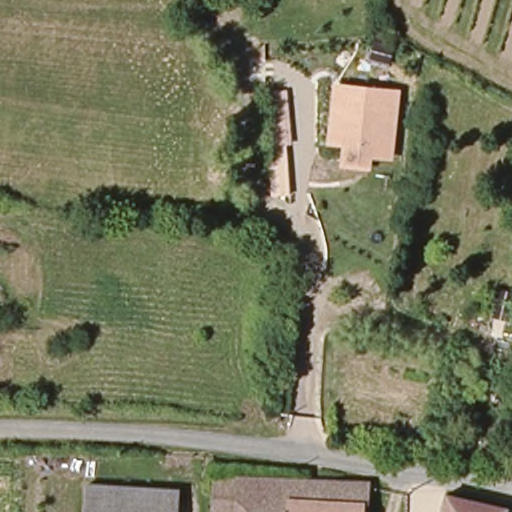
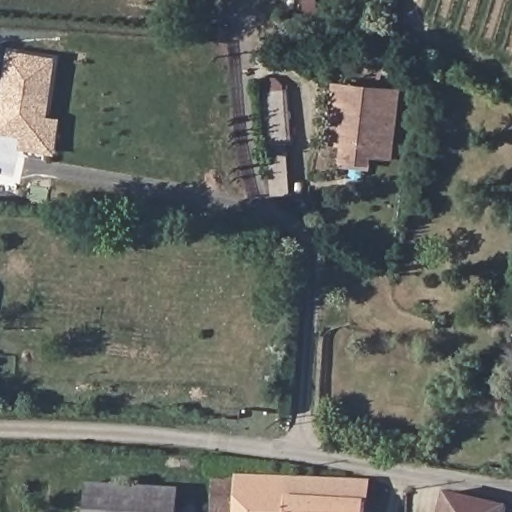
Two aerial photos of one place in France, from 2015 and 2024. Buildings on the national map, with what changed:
new [(19,150),(20,137),(0,134),(0,101),(1,101),(8,53),(57,56),(49,115),(61,117),(56,155),(19,150)]
unchanged [(333,84),(400,90),(392,160),(374,159),(372,166),(341,162),(342,146),(327,145),(333,84)]
unchanged [(288,88),(295,143),(272,146),(264,91),(288,88)]
unchanged [(214,480),(364,482),(363,512),(214,512),(214,480)]
unchanged [(84,487),(180,493),(179,512),(83,512),(84,487)]
unchanged [(502,512),(440,512),(443,494),(503,504),(502,512)]

